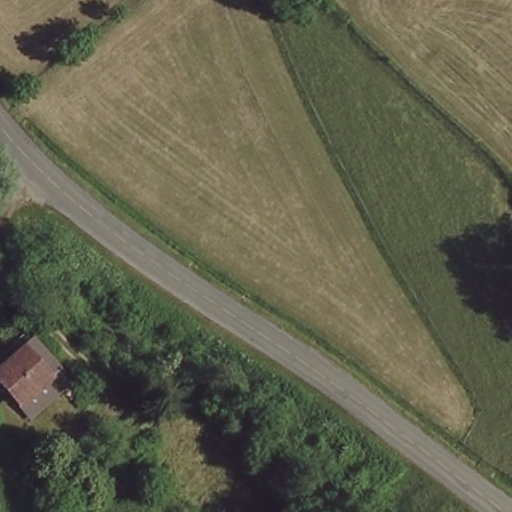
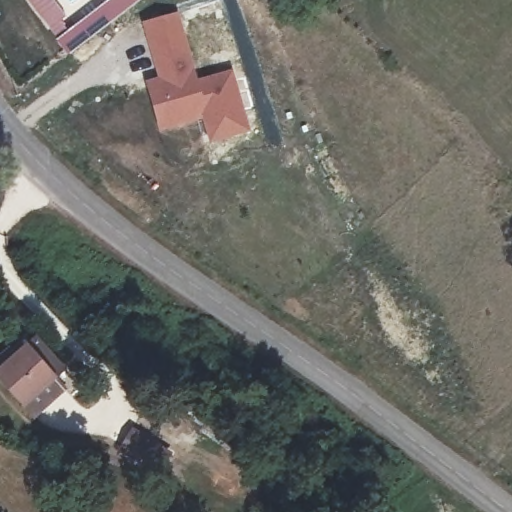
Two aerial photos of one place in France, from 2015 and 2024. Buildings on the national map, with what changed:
new [(208,142),(202,118),(159,131),(145,80),(158,77),(141,22),(178,11),(197,79),(233,69),(250,130),(208,142)]
unchanged [(27,402),(0,377),(0,370),(26,346),(55,376),(27,402)]

